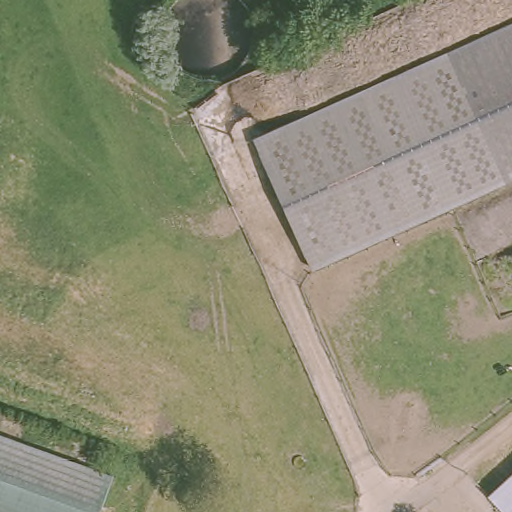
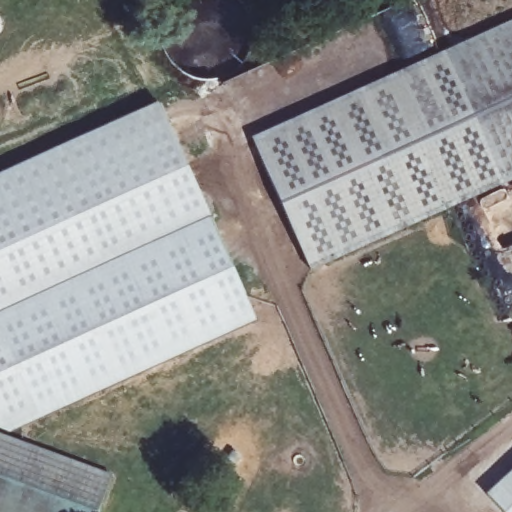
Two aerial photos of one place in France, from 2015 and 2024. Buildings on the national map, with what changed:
unchanged [(512,181),(325,282),(257,157),(512,20),(512,181)]
new [(158,103),(256,322),(11,433),(0,429),(0,174),(158,103)]
unchanged [(115,484),(105,512),(0,512),(0,439),(115,484)]
unchanged [(512,471),(512,512),(503,512),(486,495),(512,471)]

